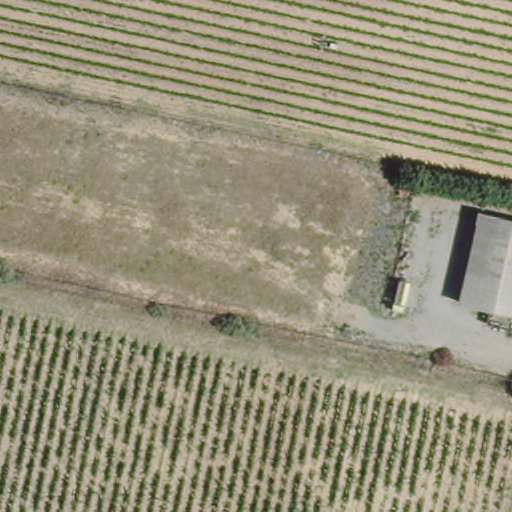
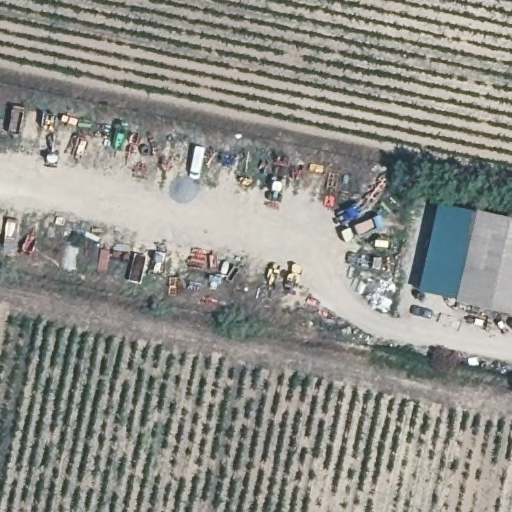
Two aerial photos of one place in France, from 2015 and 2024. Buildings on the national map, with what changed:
new [(462,299),(420,290),(440,204),(482,213),(462,299)]
unchanged [(484,205),(512,212),(512,311),(462,299),(484,205)]

